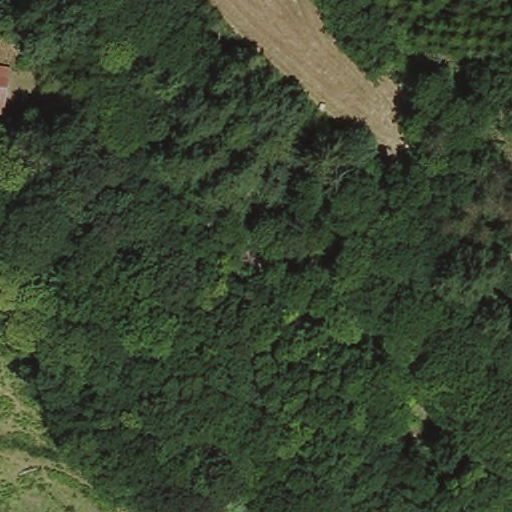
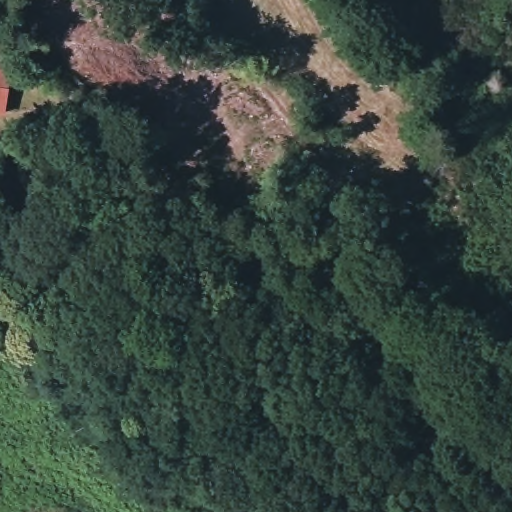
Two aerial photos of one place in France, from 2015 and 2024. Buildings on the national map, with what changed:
unchanged [(0,104),(0,89),(5,91),(0,104)]

